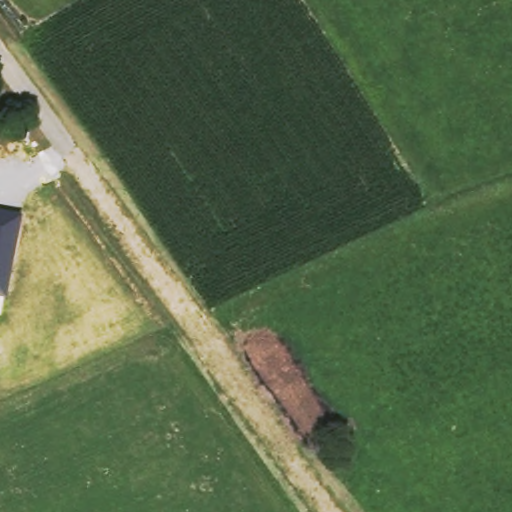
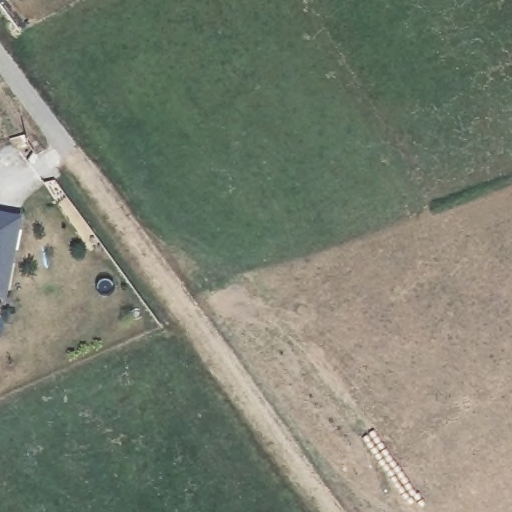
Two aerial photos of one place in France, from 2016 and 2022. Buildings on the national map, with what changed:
unchanged [(0,298),(0,213),(21,217),(6,300),(0,298)]

